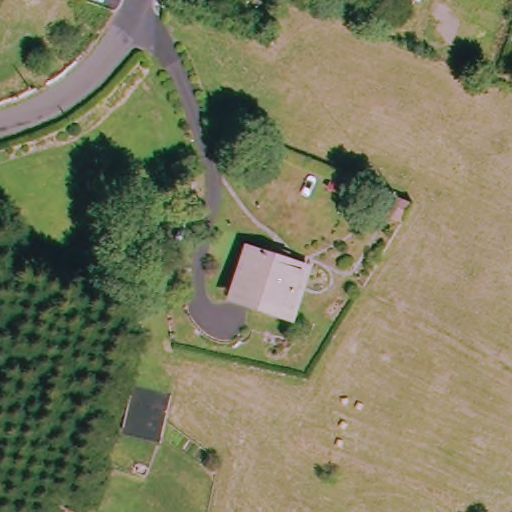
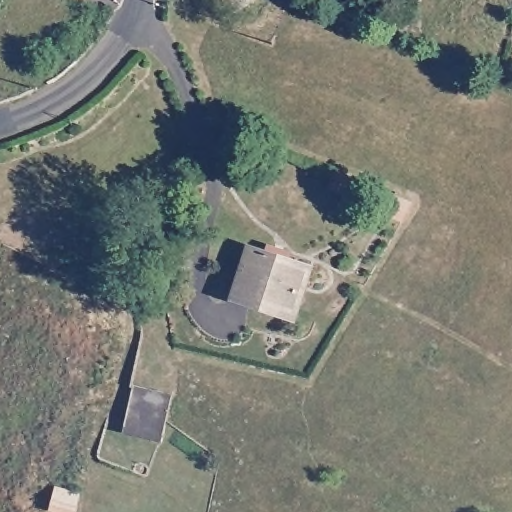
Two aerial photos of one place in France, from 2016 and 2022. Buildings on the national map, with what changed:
unchanged [(252,9),(235,17),(230,8),(222,14),(215,0),(248,0),(252,9)]
unchanged [(409,204),(399,222),(377,214),(378,208),(325,185),(331,172),(409,204)]
unchanged [(257,251),(312,273),(292,324),(236,301),(257,251)]
unchanged [(176,395),(170,423),(167,435),(129,426),(137,385),(164,392),(176,395)]
unchanged [(78,512),(54,512),(58,492),(83,497),(78,512)]

